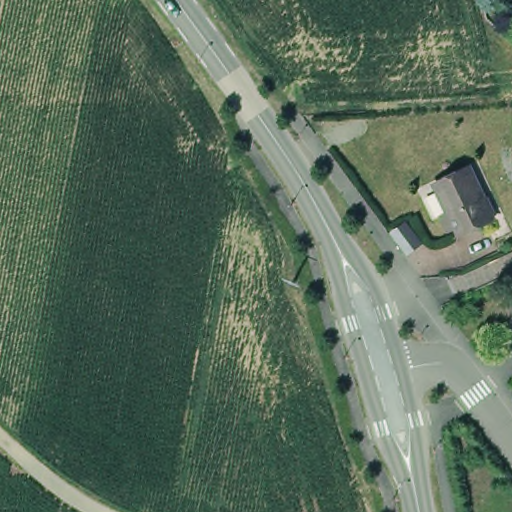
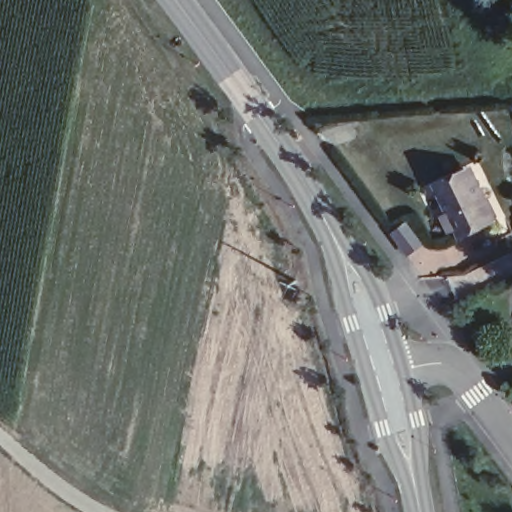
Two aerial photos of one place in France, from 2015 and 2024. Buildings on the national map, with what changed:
unchanged [(442,205),(432,185),(429,179),(465,161),(469,169),(489,213),(453,230),(450,224),(443,227),(434,210),(442,205)]

